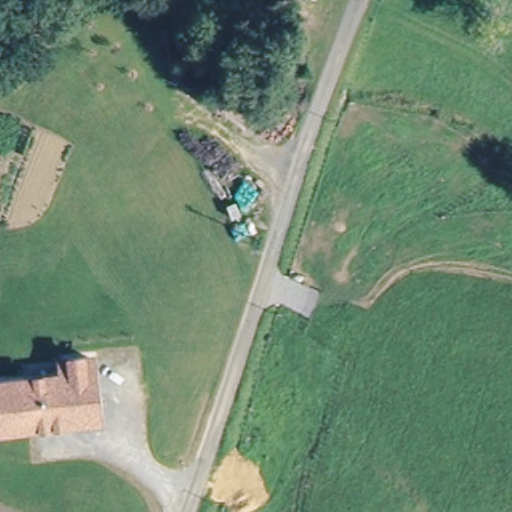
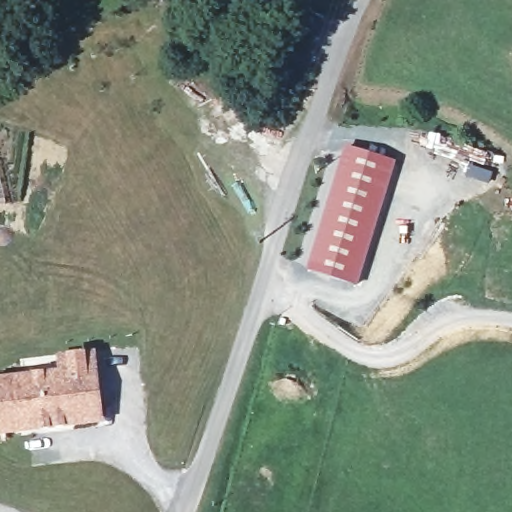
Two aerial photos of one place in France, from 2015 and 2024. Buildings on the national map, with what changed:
new [(395,162),(357,286),(308,270),(346,148),(395,162)]
unchanged [(67,424),(0,431),(0,382),(60,375),(58,360),(85,357),(90,403),(92,421),(67,424)]

